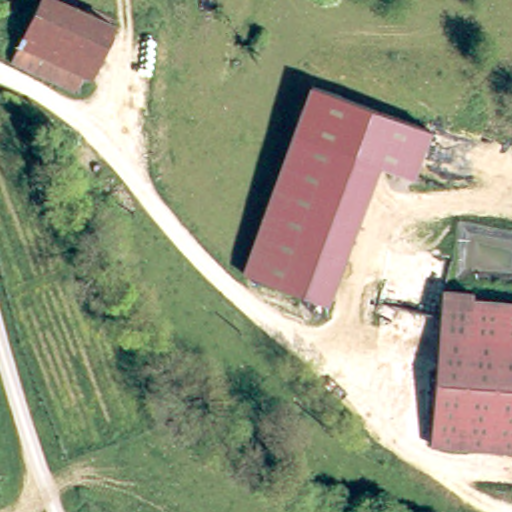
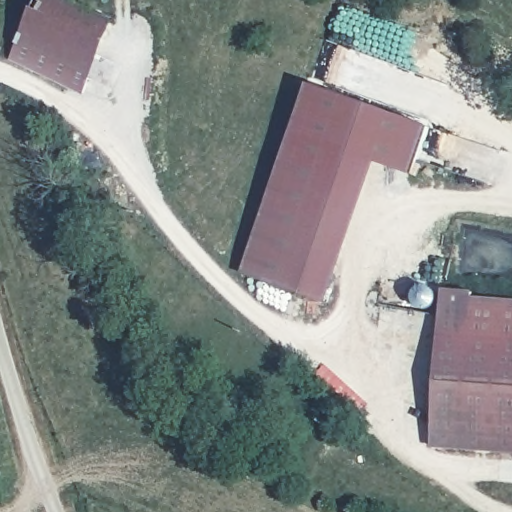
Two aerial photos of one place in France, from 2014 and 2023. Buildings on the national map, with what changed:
unchanged [(92,78),(82,74),(22,45),(43,0),(61,0),(115,25),(92,78)]
unchanged [(75,90),(15,61),(15,60),(22,45),(82,74),(75,90)]
unchanged [(350,159),(292,139),(308,90),(312,92),(426,132),(426,133),(409,180),(373,167),(350,159)]
unchanged [(373,167),(325,309),(302,301),(242,280),(292,139),(350,159),(373,167)]
unchanged [(441,294),(472,296),(472,302),(512,305),(512,457),(430,451),(441,294)]

